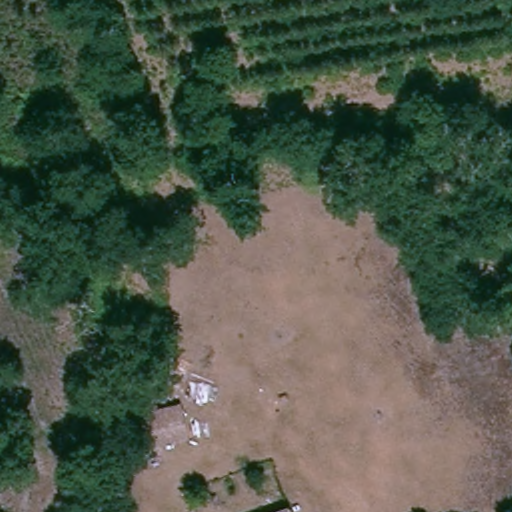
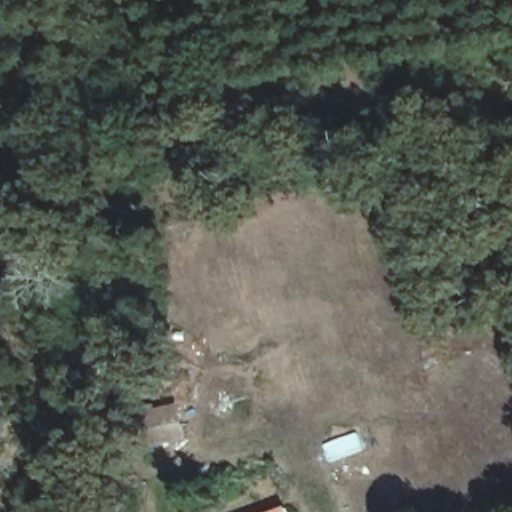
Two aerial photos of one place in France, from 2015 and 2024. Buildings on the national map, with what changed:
unchanged [(147,448),(137,412),(183,392),(190,436),(147,448)]
unchanged [(295,504),(298,512),(272,512),(295,504)]

